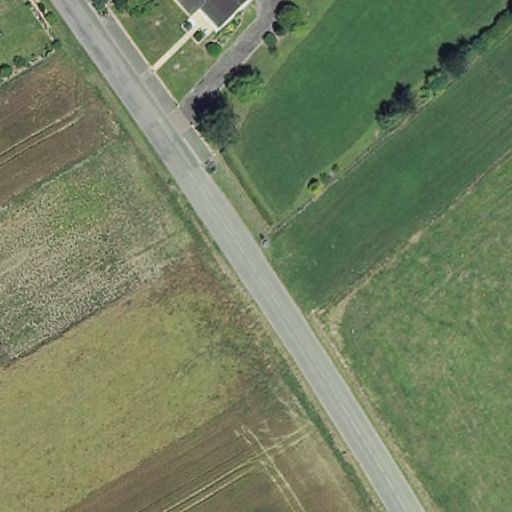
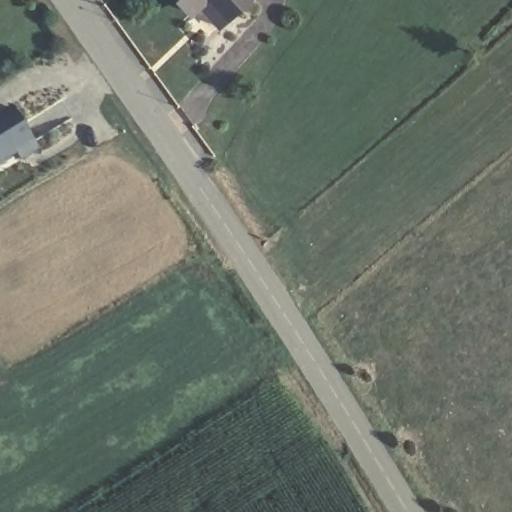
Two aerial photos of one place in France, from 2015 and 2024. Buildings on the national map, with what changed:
unchanged [(194,8),(185,0),(245,0),(229,15),(222,22),(202,1),(194,8)]
new [(20,159),(15,153),(0,163),(0,117),(13,109),(37,149),(20,159)]

